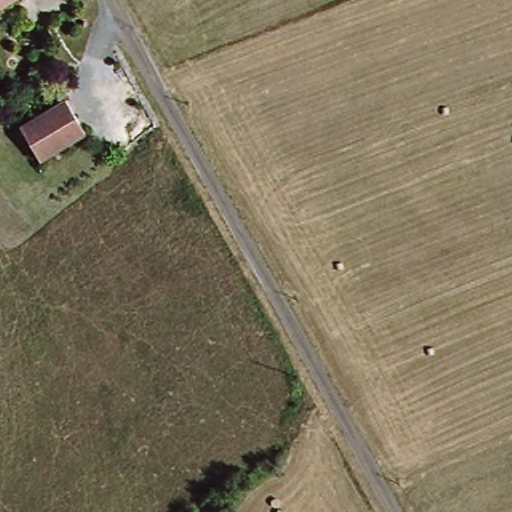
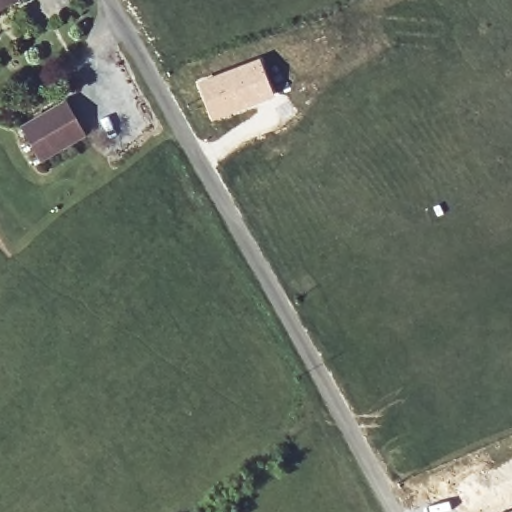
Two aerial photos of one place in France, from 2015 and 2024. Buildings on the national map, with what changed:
unchanged [(0,0),(22,0),(0,12),(0,0)]
new [(259,58),(272,94),(212,117),(199,82),(259,58)]
unchanged [(65,102),(81,132),(38,156),(22,126),(65,102)]

